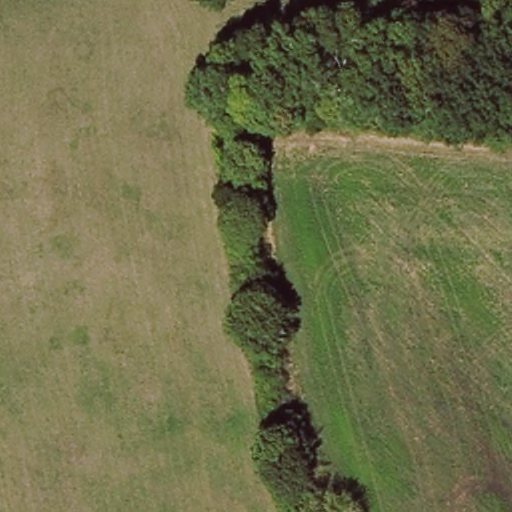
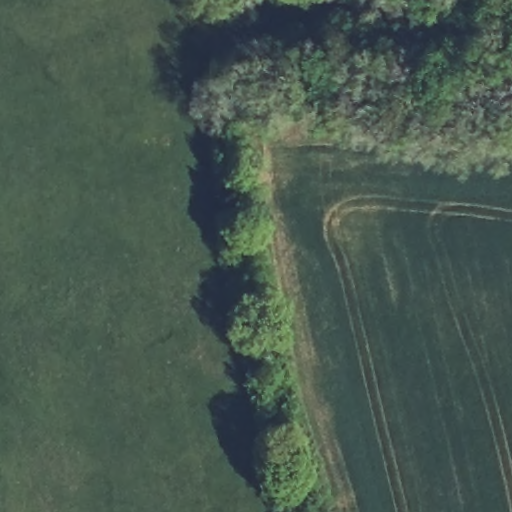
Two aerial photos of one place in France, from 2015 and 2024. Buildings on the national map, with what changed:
[]

